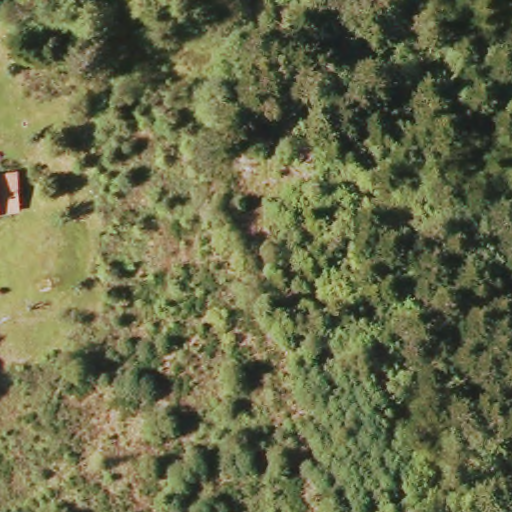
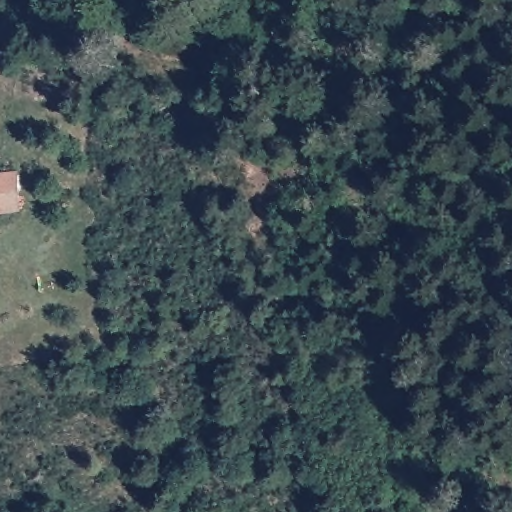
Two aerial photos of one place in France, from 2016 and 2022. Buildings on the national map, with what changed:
unchanged [(22,212),(0,213),(0,175),(19,174),(22,212)]

